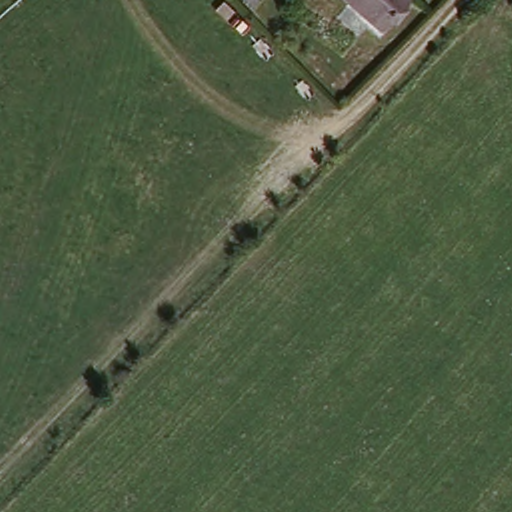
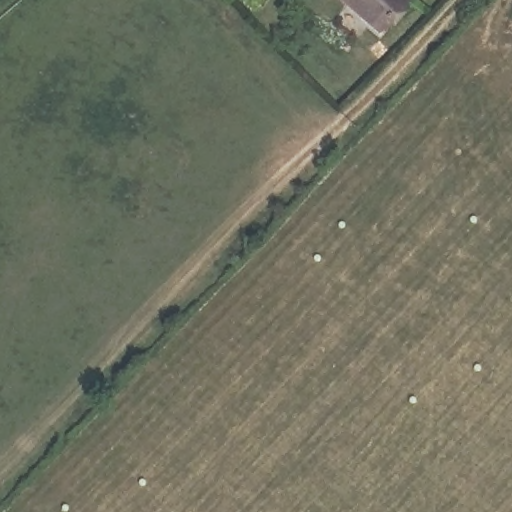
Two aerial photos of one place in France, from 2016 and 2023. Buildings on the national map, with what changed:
unchanged [(239,0),(261,0),(253,11),(239,0)]
unchanged [(381,39),(341,0),(409,0),(413,4),(381,39)]

